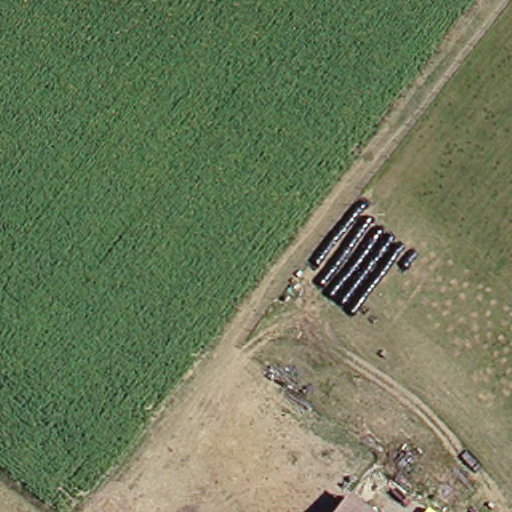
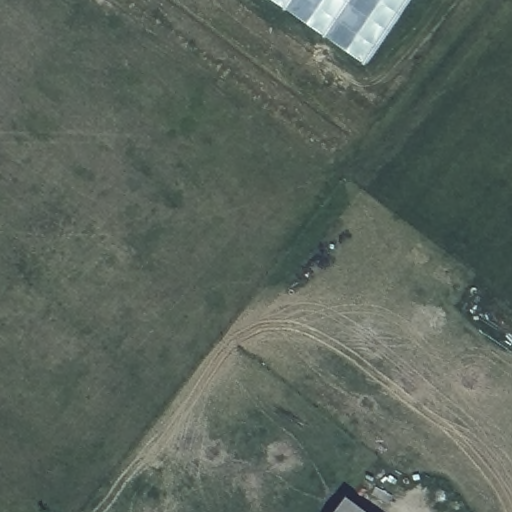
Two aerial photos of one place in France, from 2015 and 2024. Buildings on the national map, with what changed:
new [(272,0),(410,0),(365,64),(272,0)]
unchanged [(358,512),(332,512),(341,499),(358,512)]

